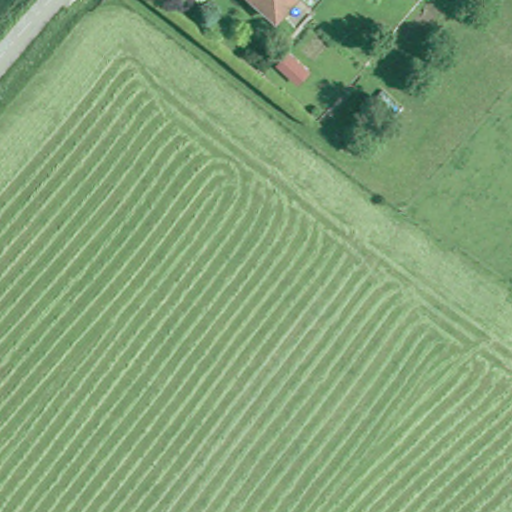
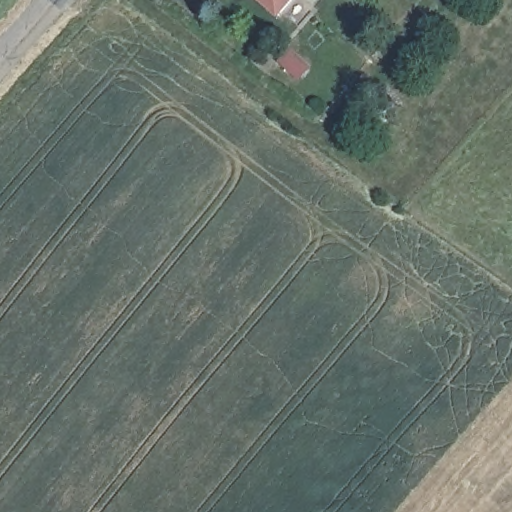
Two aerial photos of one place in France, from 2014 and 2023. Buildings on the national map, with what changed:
unchanged [(277,13),(263,0),(289,0),(277,13)]
unchanged [(293,50),(312,65),(302,77),(283,61),(293,50)]

